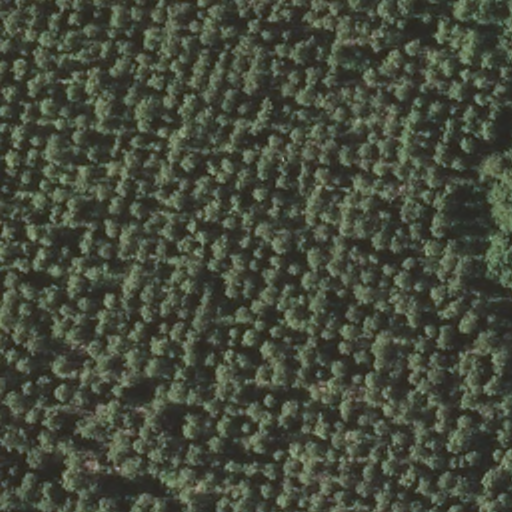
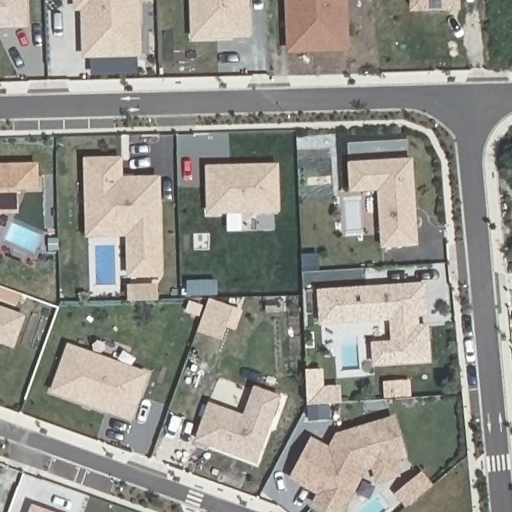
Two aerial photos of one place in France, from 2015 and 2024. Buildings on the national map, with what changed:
new [(0,27),(0,0),(27,0),(27,26),(0,27)]
new [(87,54),(86,6),(79,6),(79,0),(140,0),(141,53),(87,54)]
new [(195,36),(194,0),(250,0),(251,35),(195,36)]
new [(291,50),(290,0),(347,0),(348,48),(291,50)]
new [(417,10),(417,0),(462,0),(462,9),(417,10)]
new [(88,218),(86,159),(120,158),(120,174),(134,173),(134,178),(159,177),(160,272),(130,273),(129,232),(89,233),(88,218)]
new [(415,244),(381,247),(377,189),(350,190),(348,163),(410,159),(413,208),(413,215),(415,244)]
new [(39,185),(7,187),(0,204),(0,165),(37,163),(39,185)]
new [(277,164),(278,209),(210,211),(208,166),(277,164)]
new [(427,284),(428,312),(420,312),(420,326),(430,325),(431,360),(377,364),(375,344),(395,342),(393,318),(323,322),(321,290),(400,285),(427,284)]
new [(12,344),(0,340),(0,306),(23,315),(12,344)]
new [(69,345),(146,373),(130,418),(53,390),(69,345)]
new [(209,404),(244,417),(254,388),(278,397),(255,461),(196,439),(209,404)]
new [(291,478),(311,441),(329,449),(336,436),(392,419),(403,456),(392,459),(396,474),(377,479),(373,465),(363,468),(341,512),(331,512),(314,504),(320,493),(311,488),(291,478)]
new [(32,505),(52,512),(30,512),(32,505)]

